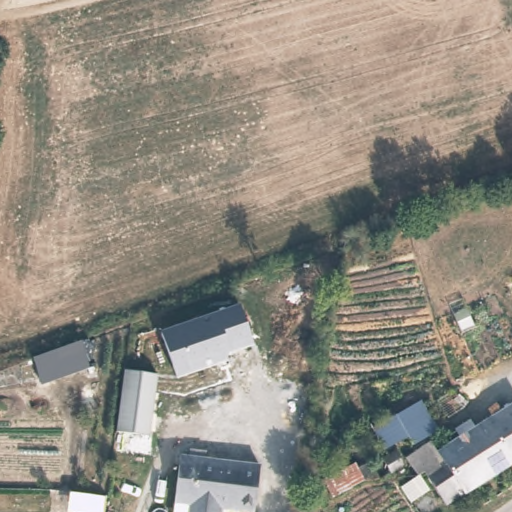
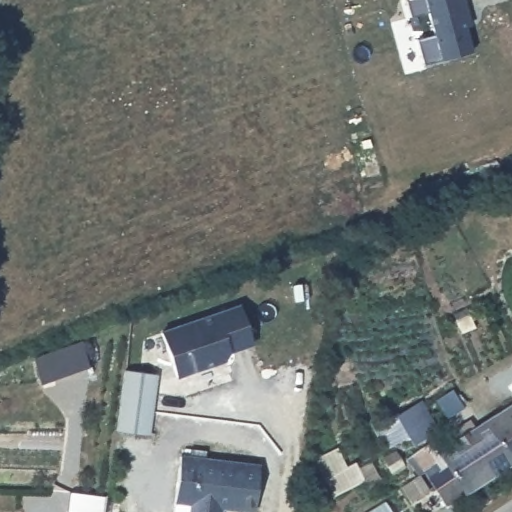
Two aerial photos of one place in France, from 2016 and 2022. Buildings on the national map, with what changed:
new [(415,38),(431,33),(425,12),(409,16),(405,0),(462,0),(469,27),(464,28),(470,51),(438,59),(422,64),(415,38)]
unchanged [(253,345),(227,353),(231,358),(176,377),(169,355),(161,331),(236,304),(253,345)]
unchanged [(33,355),(81,340),(91,367),(42,384),(33,355)]
unchanged [(148,437),(114,431),(123,369),(157,374),(148,437)]
unchanged [(406,479),(418,474),(405,453),(430,437),(436,446),(512,398),(512,462),(447,502),(433,512),(425,512),(406,479)]
unchanged [(394,446),(405,461),(386,472),(376,455),(394,446)]
unchanged [(260,456),(256,503),(207,501),(206,512),(174,512),(177,451),(260,456)]
unchanged [(352,459),(363,477),(331,495),(321,480),(352,459)]

